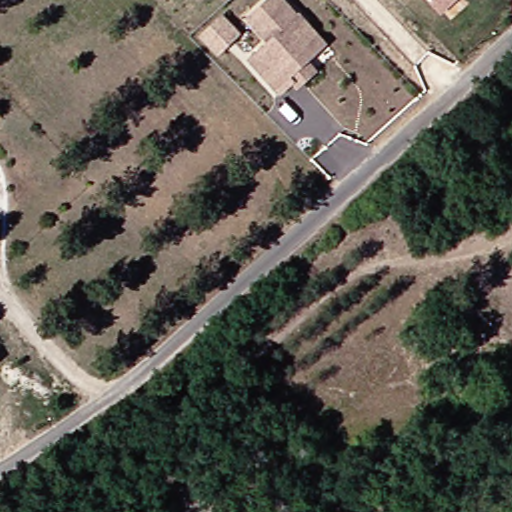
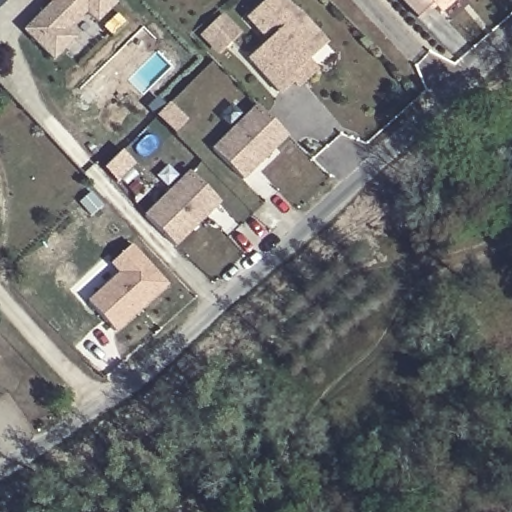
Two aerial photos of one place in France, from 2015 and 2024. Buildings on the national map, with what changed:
new [(0,6),(0,0),(6,0),(0,6)]
new [(71,48),(59,60),(30,31),(53,8),(59,3),(56,0),(117,0),(121,4),(102,23),(92,12),(72,32),(80,39),(71,48)]
unchanged [(302,86),(297,80),(284,92),(255,58),(274,42),(253,18),(274,0),(288,0),(302,16),(304,14),(329,42),(322,49),(311,59),(320,70),(302,86)]
unchanged [(438,11),(428,0),(451,0),(438,11)]
unchanged [(217,20),(231,35),(217,49),(202,35),(217,20)]
new [(261,102),(291,132),(246,176),(216,146),(261,102)]
new [(145,216),(190,172),(220,202),(175,246),(145,216)]
new [(164,283),(113,330),(87,302),(120,272),(110,263),(128,246),(164,283)]

